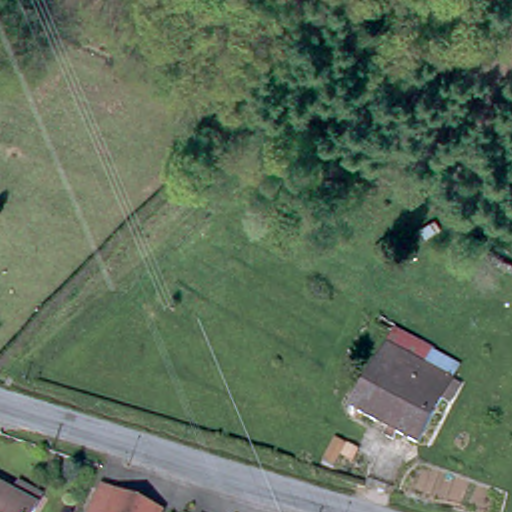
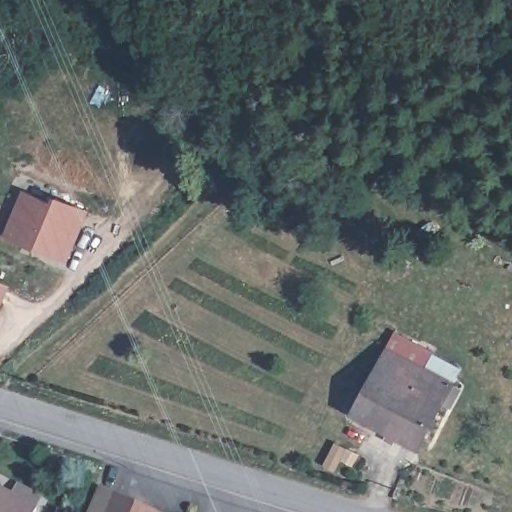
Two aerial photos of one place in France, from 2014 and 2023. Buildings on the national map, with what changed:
new [(52,201),(54,195),(88,211),(68,262),(4,236),(21,189),(52,201)]
new [(8,286),(0,307),(0,282),(8,286)]
unchanged [(423,343),(415,360),(449,378),(417,441),(352,407),(395,328),(423,343)]
unchanged [(8,497),(14,486),(34,497),(29,508),(28,512),(0,512),(0,492),(8,497)]
unchanged [(109,493),(111,492),(158,512),(88,512),(98,489),(109,493)]

